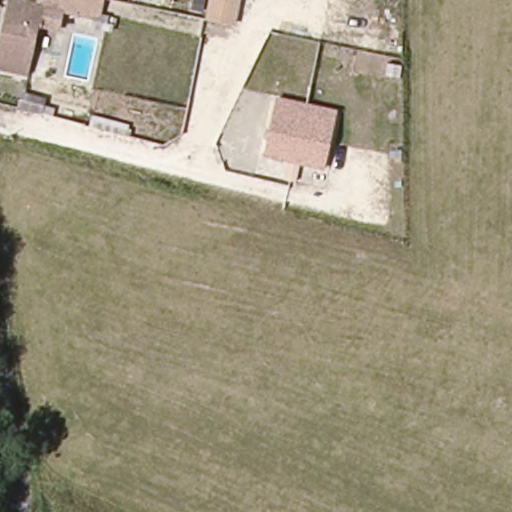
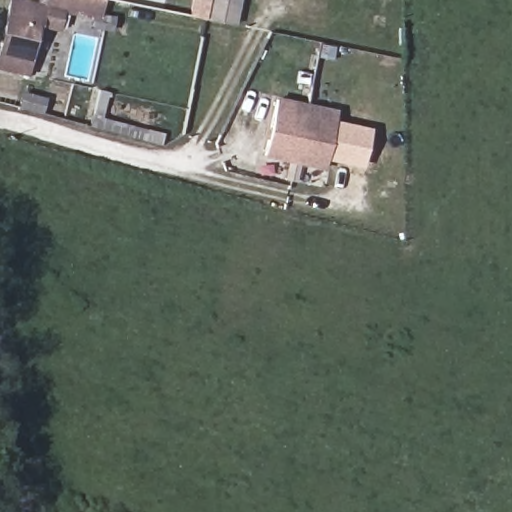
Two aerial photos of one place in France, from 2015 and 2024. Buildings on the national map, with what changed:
unchanged [(0,72),(0,52),(12,0),(36,0),(33,15),(44,17),(41,27),(32,67),(30,79),(0,72)]
unchanged [(102,18),(65,11),(61,31),(41,27),(44,17),(33,15),(36,0),(105,0),(102,18)]
unchanged [(210,0),(240,0),(236,25),(206,17),(210,0)]
unchanged [(276,95),(336,109),(330,139),(268,127),(276,95)]
new [(330,139),(334,120),(372,128),(362,167),(326,159),(330,139)]
unchanged [(330,139),(325,164),(262,151),(268,127),(330,139)]

